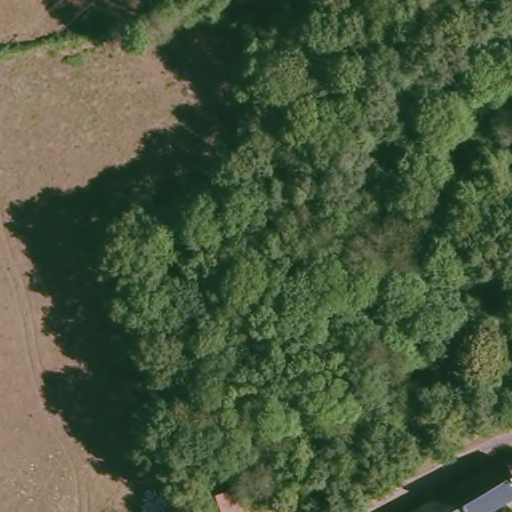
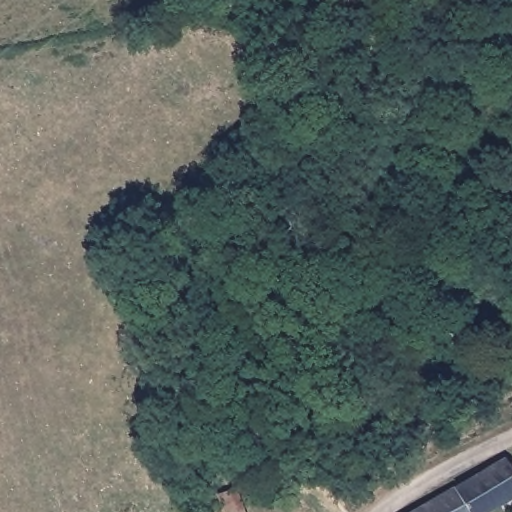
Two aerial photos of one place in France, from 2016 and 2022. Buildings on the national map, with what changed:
unchanged [(512,458),(512,497),(486,512),(415,512),(511,456),(512,458)]
unchanged [(206,501),(240,489),(248,512),(210,512),(206,501)]

